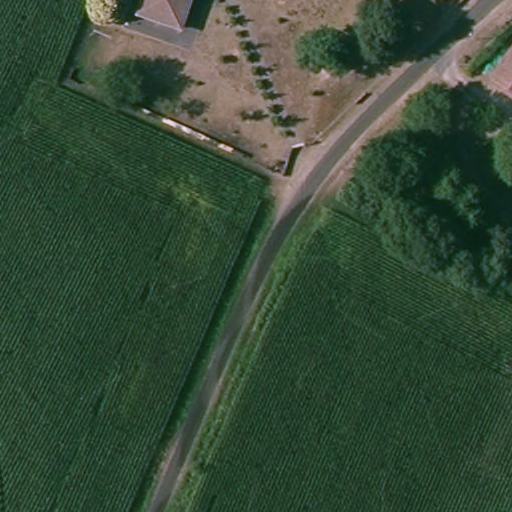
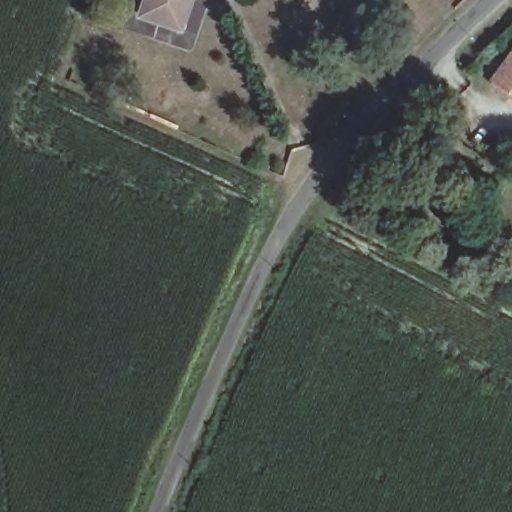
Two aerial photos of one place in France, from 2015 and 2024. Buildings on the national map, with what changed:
unchanged [(136,20),(142,0),(191,0),(181,34),(136,20)]
unchanged [(496,86),(512,61),(512,96),(496,86)]

